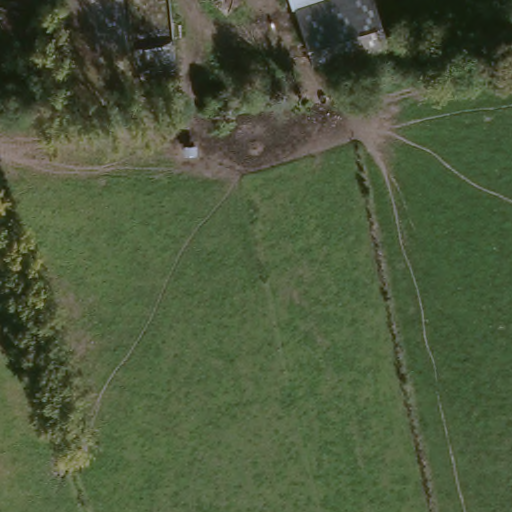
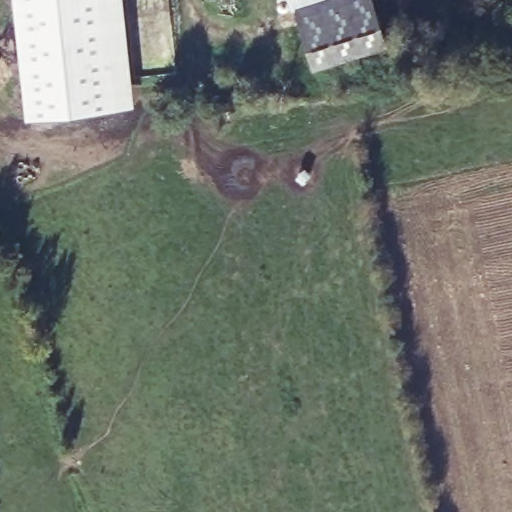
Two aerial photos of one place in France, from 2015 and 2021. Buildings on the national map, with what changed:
new [(117,113),(27,123),(14,0),(105,0),(117,113)]
unchanged [(390,43),(320,67),(295,0),(376,0),(390,43)]

